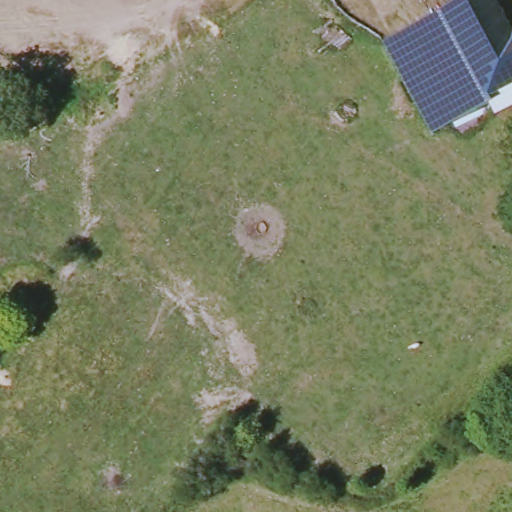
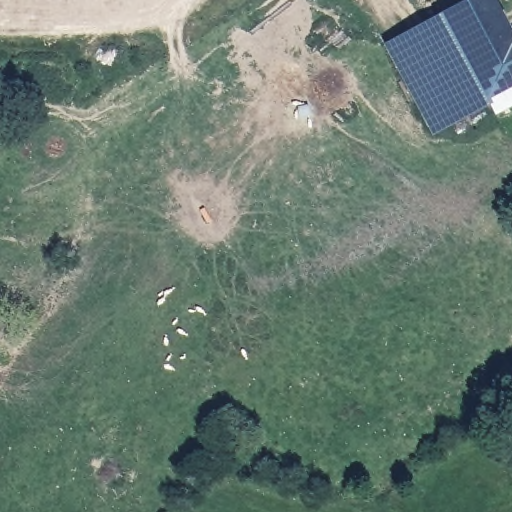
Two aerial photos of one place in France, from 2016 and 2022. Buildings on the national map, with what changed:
unchanged [(489,97),(445,15),(470,0),(494,0),(512,33),(512,97),(499,104),(489,97)]
unchanged [(489,97),(436,124),(390,45),(445,15),(489,97)]

